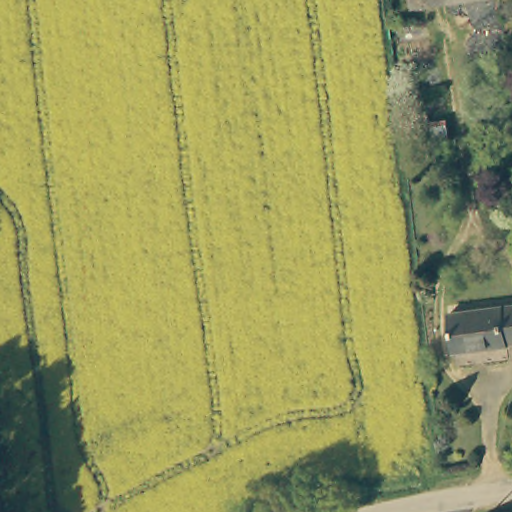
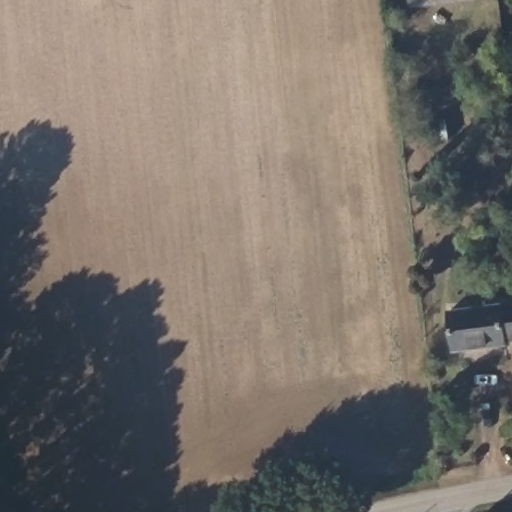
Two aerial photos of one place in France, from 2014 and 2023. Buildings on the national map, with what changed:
unchanged [(427,10),(426,0),(489,0),(490,2),(427,10)]
unchanged [(509,342),(509,349),(460,355),(455,311),(512,304),(512,342),(509,342)]

